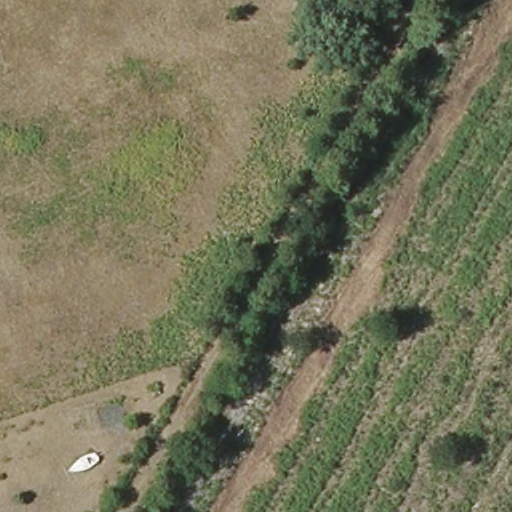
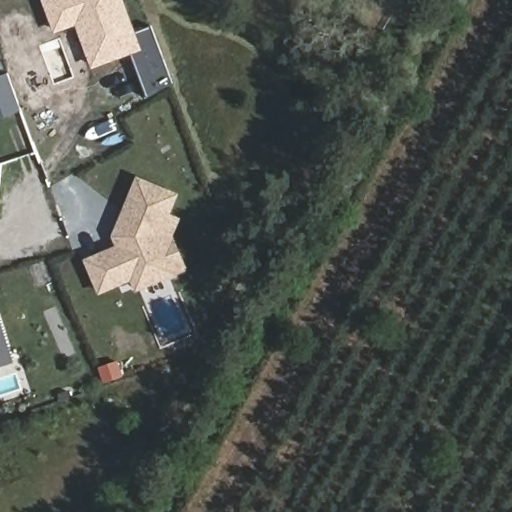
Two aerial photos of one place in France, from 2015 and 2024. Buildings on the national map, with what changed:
new [(150,27),(171,83),(147,97),(132,54),(91,69),(75,26),(53,34),(41,0),(124,0),(135,32),(150,27)]
new [(0,117),(0,77),(8,73),(20,109),(0,117)]
new [(181,217),(172,236),(187,270),(178,273),(134,291),(129,280),(97,294),(82,259),(115,246),(111,235),(136,175),(179,193),(170,214),(181,217)]
new [(0,313),(13,355),(0,359),(0,313)]

